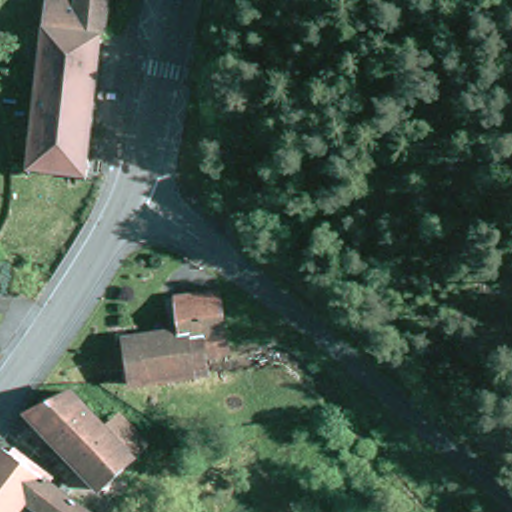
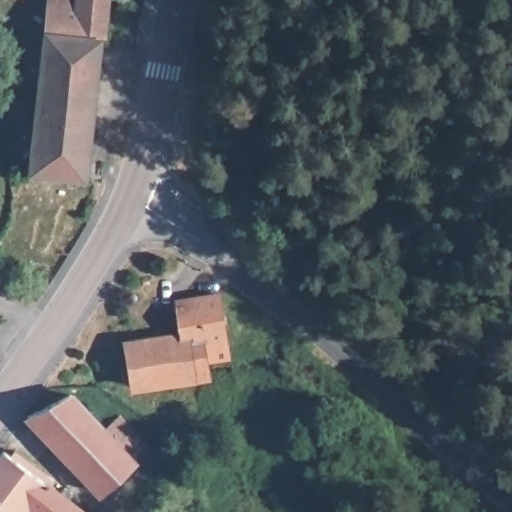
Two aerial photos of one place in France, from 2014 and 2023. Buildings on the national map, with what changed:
unchanged [(26,162),(39,8),(73,9),(74,0),(100,0),(84,180),(25,179),(25,172),(16,171),(16,161),(26,162)]
unchanged [(168,346),(158,322),(154,308),(198,295),(214,332),(168,346)]
unchanged [(125,380),(112,335),(158,322),(168,346),(214,332),(236,326),(242,346),(125,380)]
unchanged [(66,399),(98,426),(112,411),(145,442),(100,485),(25,419),(66,399)]
unchanged [(21,508),(18,512),(0,512),(0,446),(9,453),(14,447),(51,474),(46,482),(56,490),(60,485),(69,492),(65,497),(84,512),(26,512),(21,508)]

